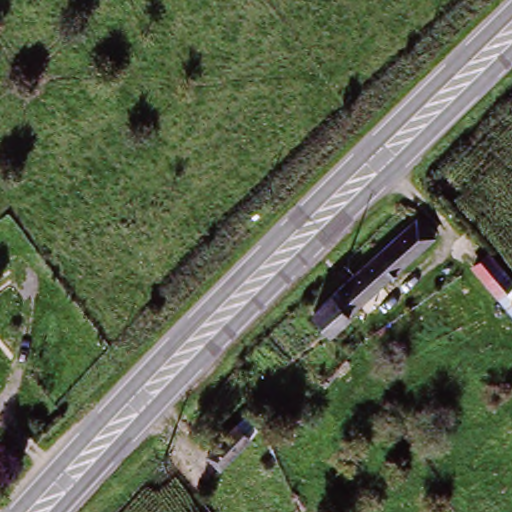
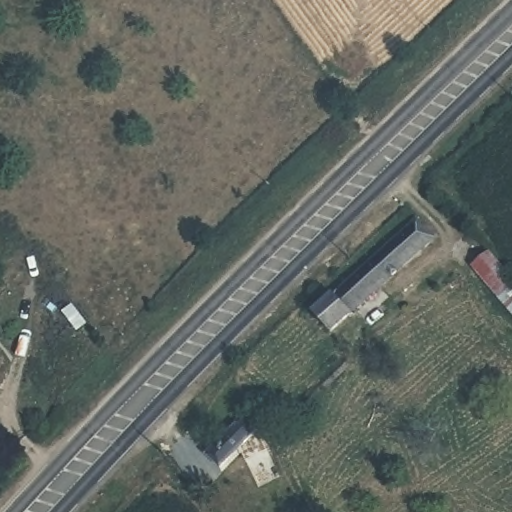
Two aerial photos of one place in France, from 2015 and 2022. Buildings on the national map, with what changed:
unchanged [(302,310),(409,213),(425,231),(318,327),(302,310)]
unchanged [(481,281),(499,266),(512,281),(512,316),(506,310),(481,281)]
unchanged [(201,454),(237,417),(250,430),(214,466),(201,454)]

